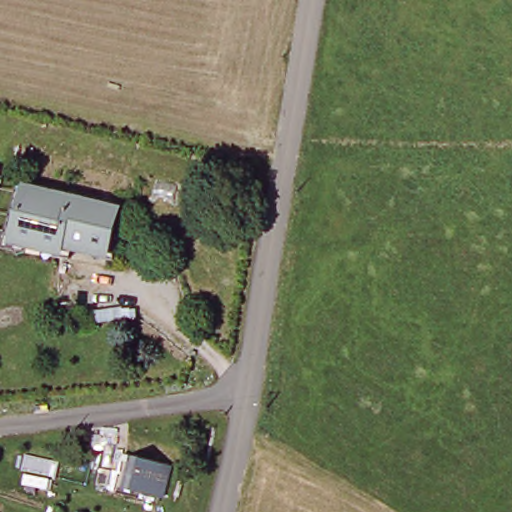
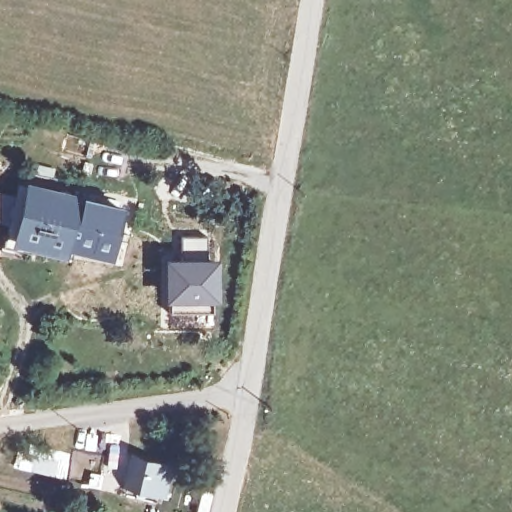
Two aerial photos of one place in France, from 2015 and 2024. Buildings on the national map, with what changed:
unchanged [(120,213),(110,252),(77,243),(74,254),(23,242),(32,194),(120,213)]
new [(219,258),(217,302),(164,302),(163,257),(219,258)]
unchanged [(183,467),(172,501),(120,481),(131,448),(183,467)]

